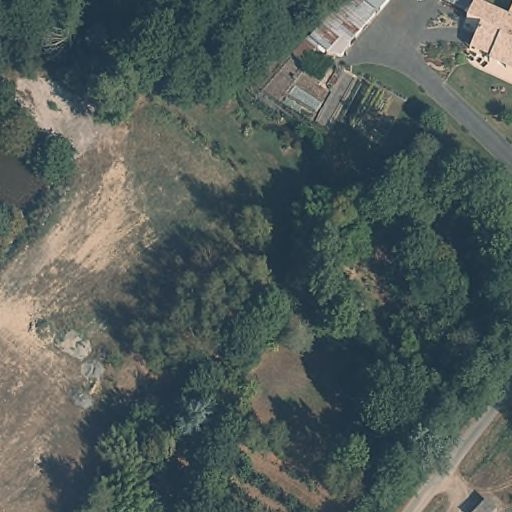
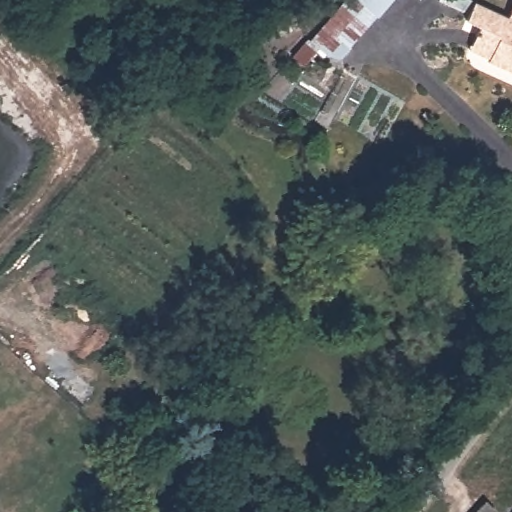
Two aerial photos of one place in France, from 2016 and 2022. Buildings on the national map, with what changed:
unchanged [(375,17),(350,46),(339,59),(321,58),(314,53),(304,65),(292,55),(305,41),(345,0),(390,0),(375,17)]
unchanged [(509,25),(512,26),(512,77),(486,66),(487,64),(468,56),(478,34),(463,28),(471,9),(509,25)]
unchanged [(512,16),(512,26),(509,25),(512,16)]

